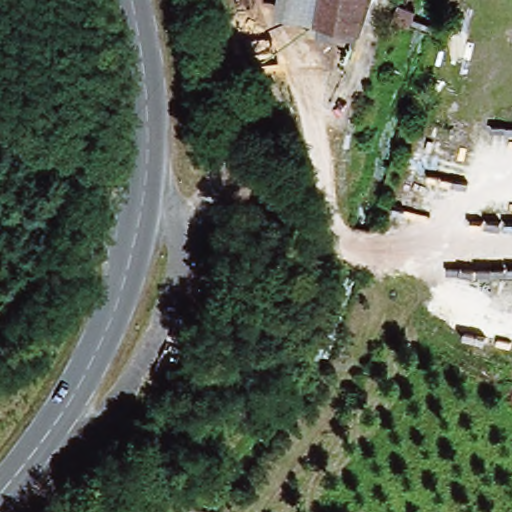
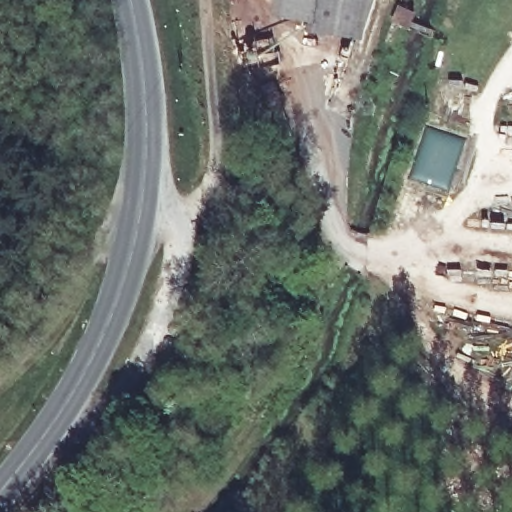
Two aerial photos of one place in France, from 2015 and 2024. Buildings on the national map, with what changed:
unchanged [(376,0),(367,29),(288,16),(283,16),(284,0),(376,0)]
unchanged [(405,33),(392,26),(399,12),(412,19),(405,33)]

